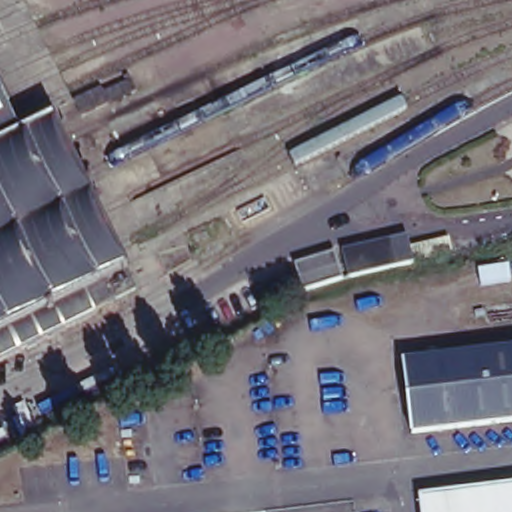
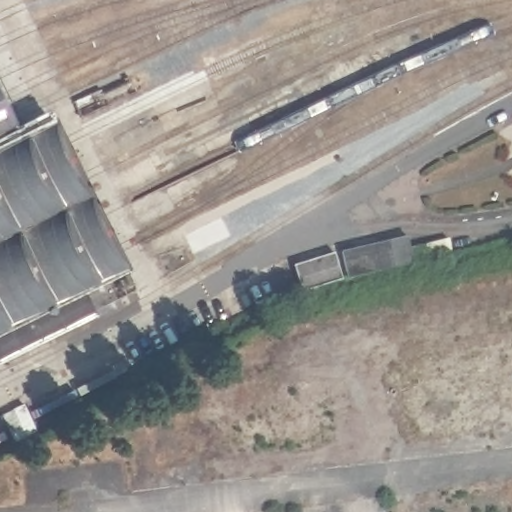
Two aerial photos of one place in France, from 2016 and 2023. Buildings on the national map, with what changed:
unchanged [(136,93),(81,119),(74,103),(128,77),(136,93)]
unchanged [(53,123),(135,290),(94,310),(96,315),(0,362),(0,99),(20,139),(53,123)]
unchanged [(347,251),(412,236),(415,248),(453,238),(457,252),(418,261),(419,262),(353,277),(347,251)]
unchanged [(299,265),(339,253),(348,279),(307,291),(299,265)]
demolished [(402,365),(512,351),(512,422),(411,434),(402,365)]
unchanged [(4,422),(28,410),(39,434),(15,445),(4,422)]
demolished [(512,487),(512,512),(426,512),(424,498),(512,487)]

